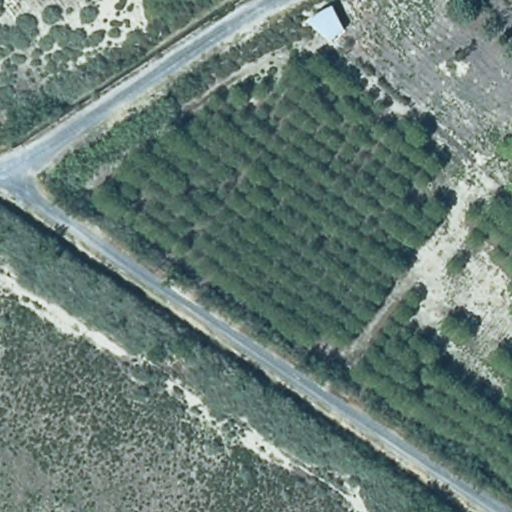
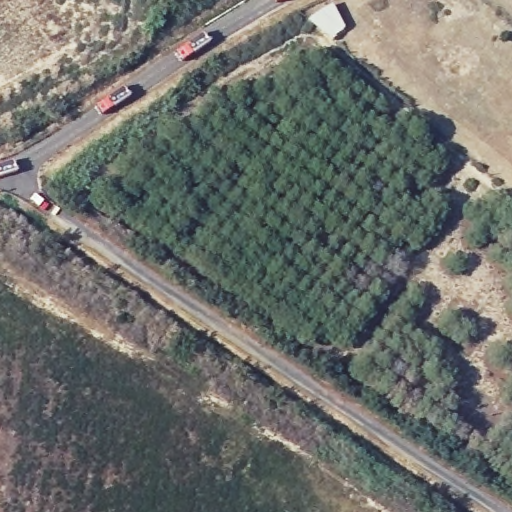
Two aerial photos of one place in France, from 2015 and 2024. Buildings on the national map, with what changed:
unchanged [(327,0),(349,23),(330,38),(306,16),(325,0),(327,0)]

